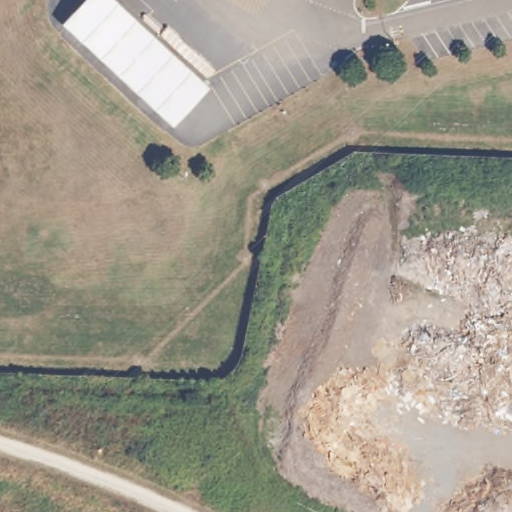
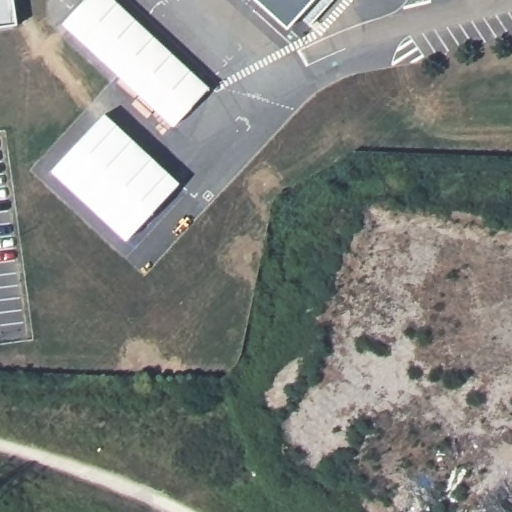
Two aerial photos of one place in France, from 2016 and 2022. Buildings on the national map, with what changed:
new [(0,27),(0,0),(13,0),(16,25),(0,27)]
unchanged [(84,0),(108,0),(206,91),(171,129),(60,26),(84,0)]
new [(287,27),(257,0),(311,0),(287,27)]
new [(126,240),(51,171),(105,113),(179,183),(126,240)]

